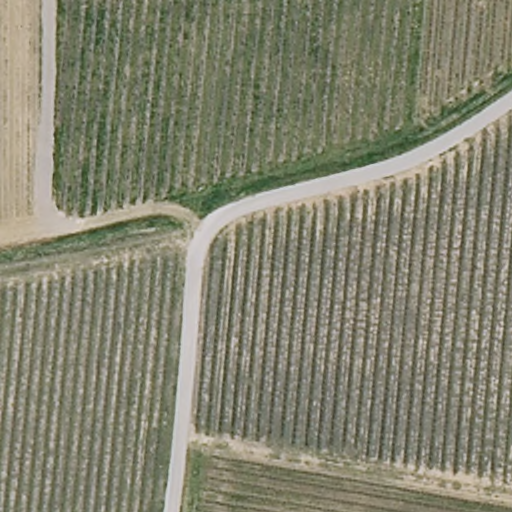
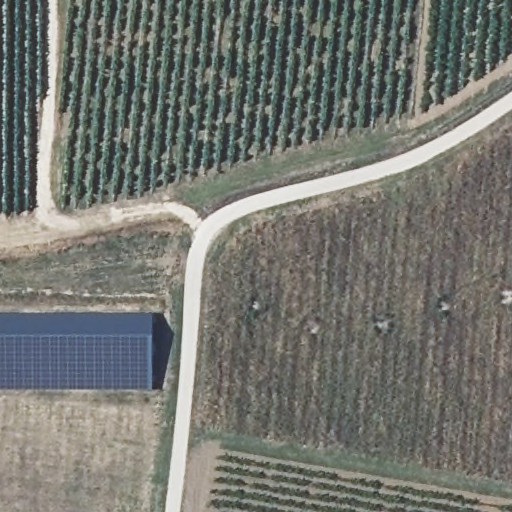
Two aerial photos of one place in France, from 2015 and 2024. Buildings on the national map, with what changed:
new [(151,314),(151,391),(0,392),(0,316),(151,314)]

